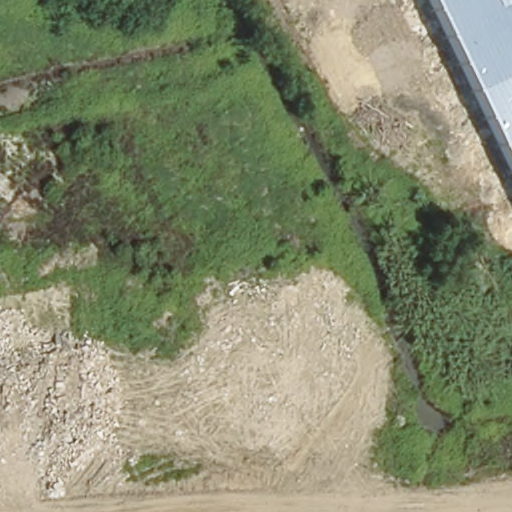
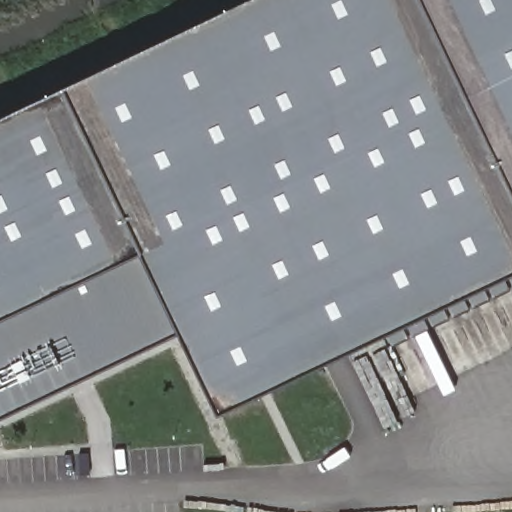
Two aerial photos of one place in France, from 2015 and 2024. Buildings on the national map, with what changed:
new [(180,330),(144,249),(67,84),(243,0),(425,0),(512,183),(512,272),(218,411),(180,330)]
unchanged [(512,183),(425,0),(512,0),(512,183)]
new [(67,84),(144,249),(0,317),(0,115),(67,84)]
new [(144,249),(180,330),(0,417),(0,317),(144,249)]

